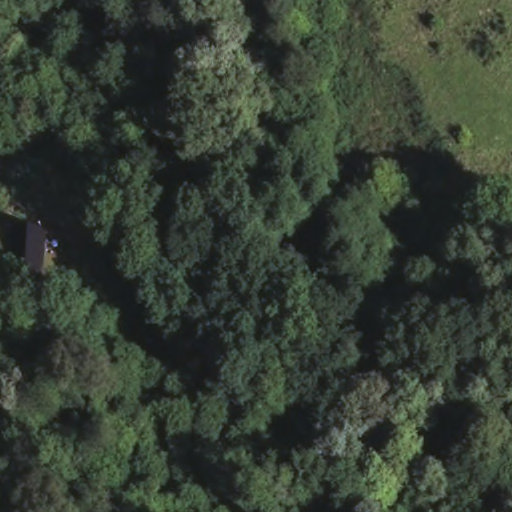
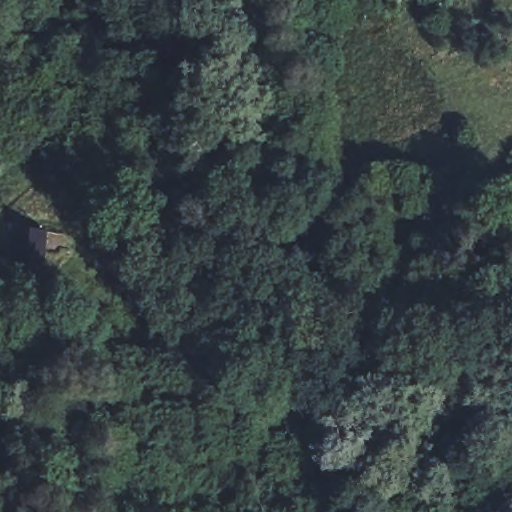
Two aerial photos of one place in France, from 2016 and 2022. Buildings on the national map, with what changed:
unchanged [(38,229),(31,282),(1,278),(8,226),(38,229)]

